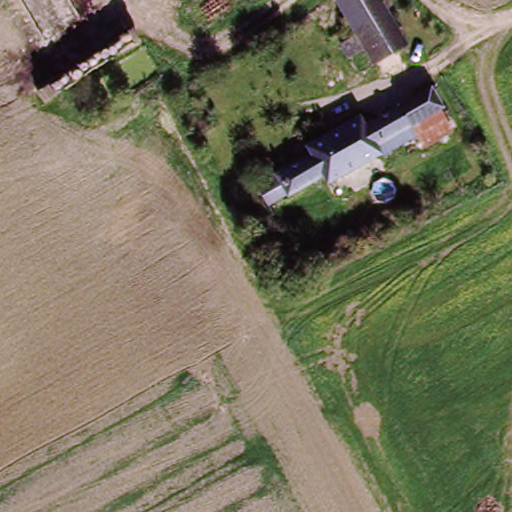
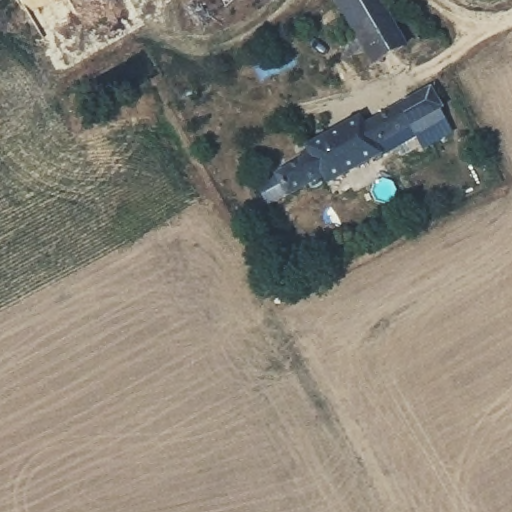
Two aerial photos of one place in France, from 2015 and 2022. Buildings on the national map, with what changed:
unchanged [(334,2),(338,0),(372,0),(387,22),(403,48),(376,64),(364,49),(352,56),(346,45),(357,39),(334,2)]
unchanged [(438,108),(445,124),(434,129),(431,130),(372,156),(377,166),(366,171),(349,178),(331,137),(357,125),(362,135),(436,102),(438,108)]
unchanged [(337,183),(319,191),(316,184),(263,207),(255,186),(305,161),(300,150),(331,137),(349,178),(337,183)]

